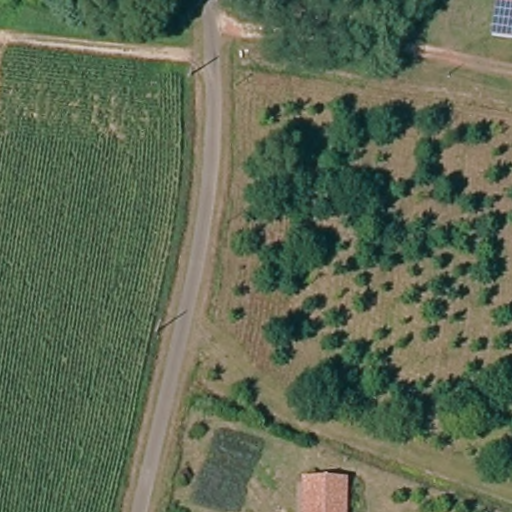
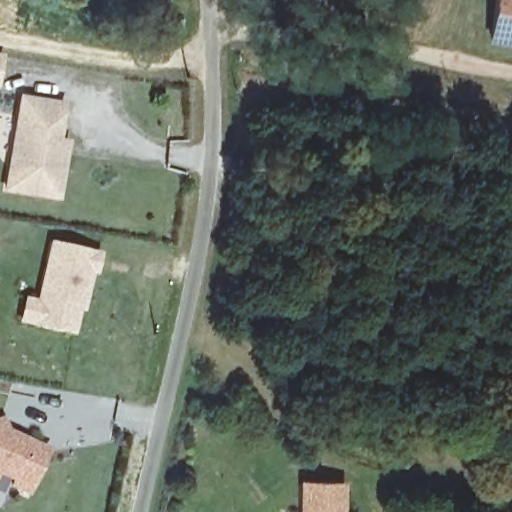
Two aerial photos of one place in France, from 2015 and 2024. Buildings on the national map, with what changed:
unchanged [(493,47),(497,0),(512,0),(512,49),(493,47)]
new [(0,74),(0,53),(4,54),(0,74)]
new [(21,97),(62,104),(56,140),(66,142),(65,152),(58,197),(22,191),(6,189),(11,157),(21,97)]
new [(103,253),(98,274),(92,273),(85,311),(80,310),(75,335),(19,323),(23,296),(36,298),(48,240),(103,253)]
new [(5,430),(34,443),(29,455),(42,461),(28,492),(12,485),(15,479),(0,472),(0,430),(4,432),(5,430)]
unchanged [(345,482),(344,512),(304,512),(305,481),(345,482)]

